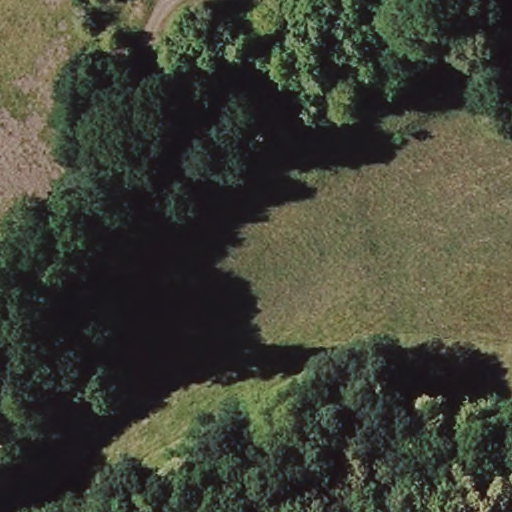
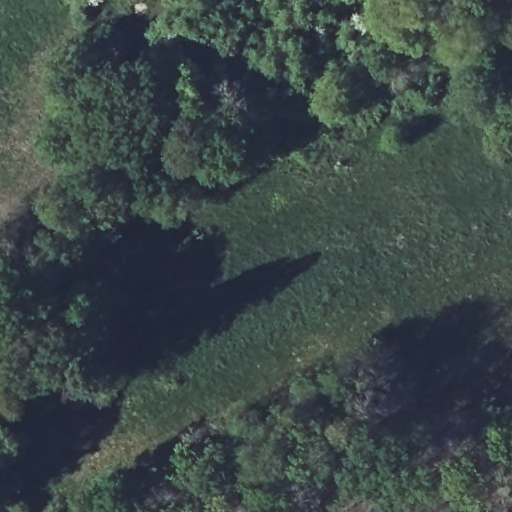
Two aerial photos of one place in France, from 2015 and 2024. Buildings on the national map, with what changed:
unchanged [(62,0),(83,0),(76,15),(60,5),(62,0)]

